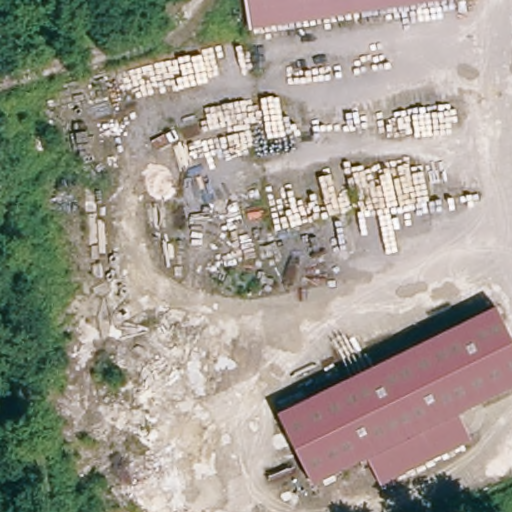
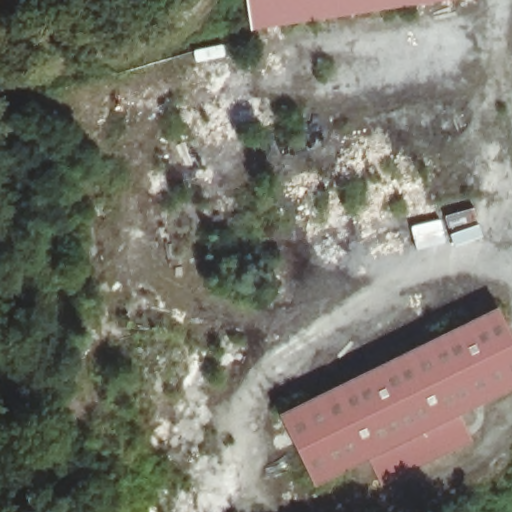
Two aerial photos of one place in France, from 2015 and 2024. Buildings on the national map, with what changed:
unchanged [(434,0),(251,29),(248,0),(434,0)]
unchanged [(279,414),(497,307),(512,337),(512,386),(460,413),(473,438),(382,481),(367,456),(315,484),(279,414)]

